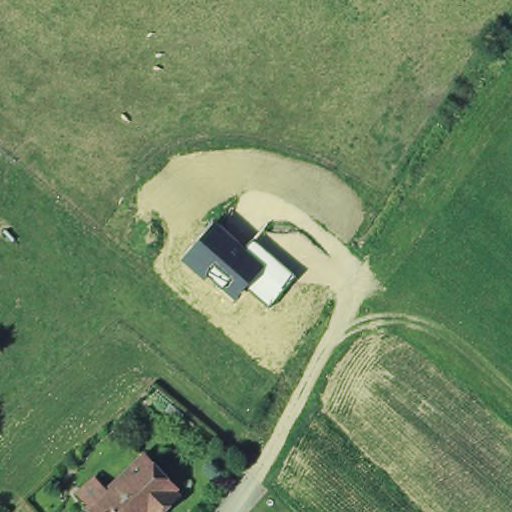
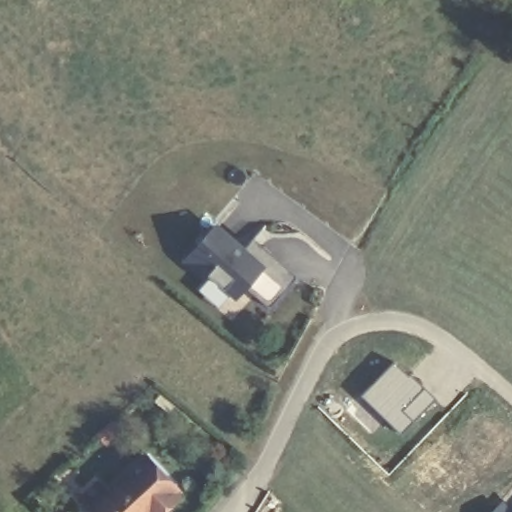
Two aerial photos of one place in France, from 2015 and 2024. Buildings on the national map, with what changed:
unchanged [(270,308),(246,287),(235,299),(209,275),(205,280),(182,259),(215,219),(247,247),(254,239),(297,275),(270,308)]
new [(393,361),(436,398),(399,432),(360,394),(393,361)]
unchanged [(87,506),(77,495),(93,479),(105,490),(142,455),(174,488),(171,490),(176,495),(160,511),(158,512),(91,512),(87,507),(87,506)]
new [(511,512),(492,512),(502,502),(511,512)]

